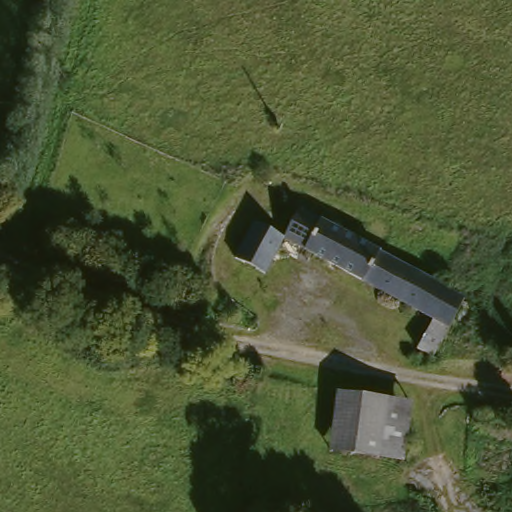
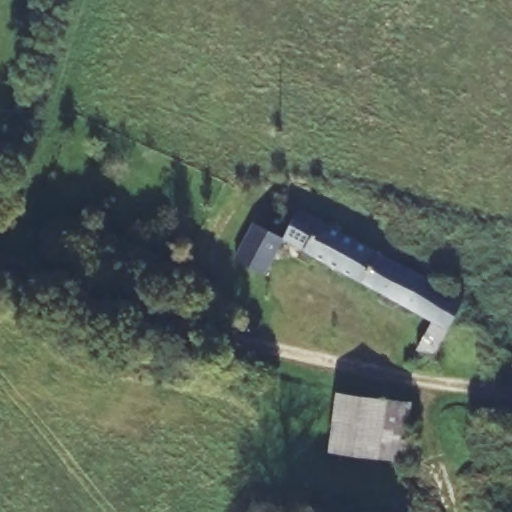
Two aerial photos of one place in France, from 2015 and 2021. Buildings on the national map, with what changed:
unchanged [(412,276),(467,311),(434,360),(416,350),(430,326),(285,234),(306,208),(412,276)]
unchanged [(264,269),(235,256),(259,220),(285,234),(264,269)]
unchanged [(398,412),(389,461),(370,459),(323,450),(329,399),(368,408),(398,412)]

